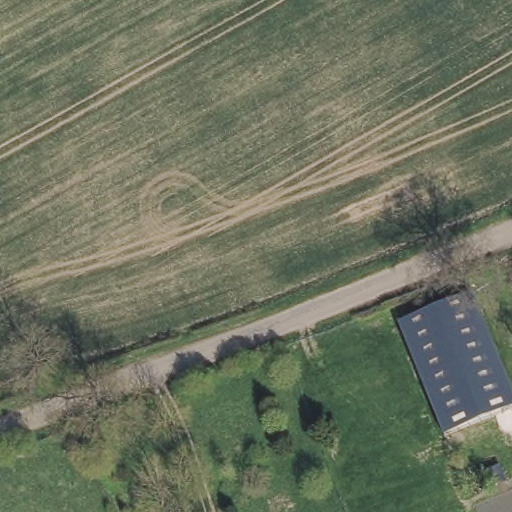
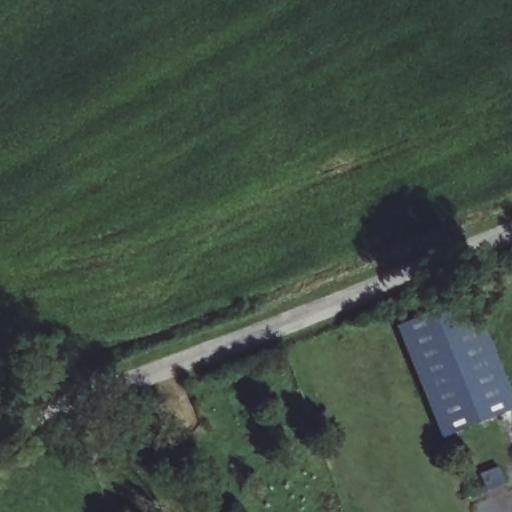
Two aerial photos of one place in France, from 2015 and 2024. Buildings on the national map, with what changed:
unchanged [(400,326),(473,297),(512,392),(512,409),(445,437),(400,326)]

